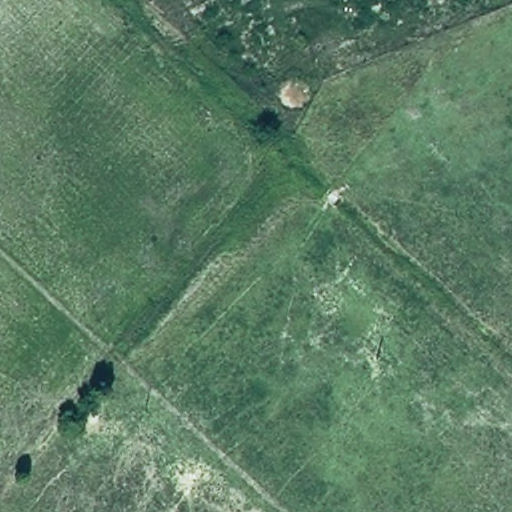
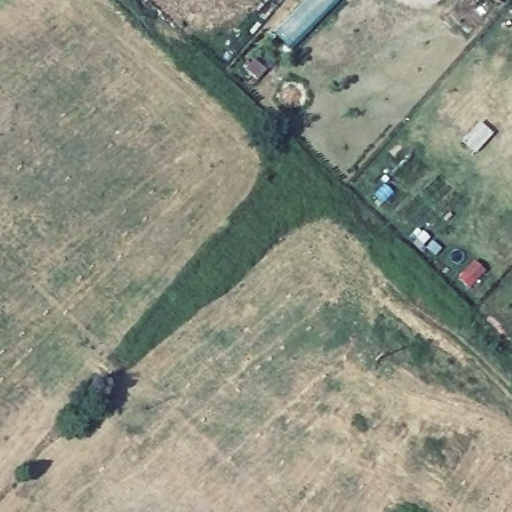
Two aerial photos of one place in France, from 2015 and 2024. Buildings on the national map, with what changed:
[]

